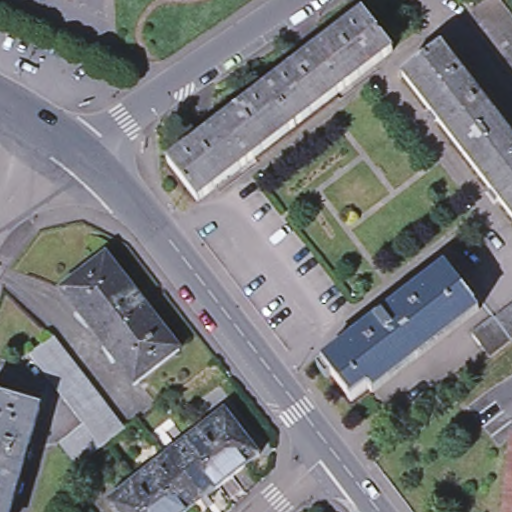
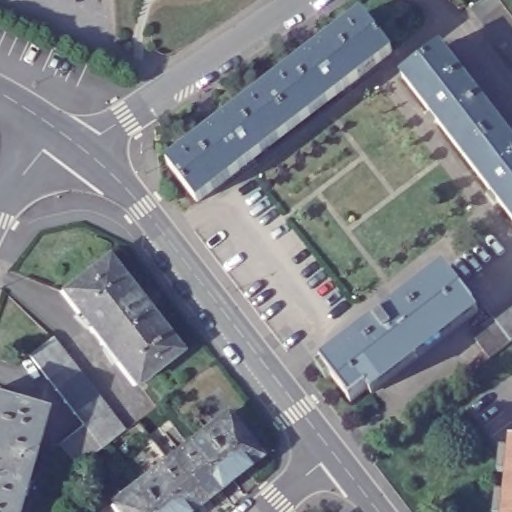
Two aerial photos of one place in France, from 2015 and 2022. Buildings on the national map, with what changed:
unchanged [(471,9),(482,0),(500,0),(512,15),(512,61),(471,9)]
unchanged [(360,19),(390,56),(196,209),(166,172),(360,19)]
unchanged [(438,51),(512,144),(512,222),(400,81),(438,51)]
unchanged [(150,324),(155,319),(180,353),(135,388),(61,292),(107,258),(132,290),(127,295),(150,324)]
unchanged [(446,273),(476,310),(353,407),(323,369),(446,273)]
unchanged [(473,334),(495,317),(496,319),(512,308),(512,342),(492,358),(473,334)]
unchanged [(84,426),(48,379),(30,357),(54,339),(71,361),(107,408),(125,432),(108,444),(102,449),(78,468),(60,444),(84,426)]
unchanged [(10,512),(0,512),(0,399),(40,411),(10,512)]
unchanged [(166,459),(195,436),(200,434),(202,437),(227,417),(260,459),(201,504),(166,459)]
unchanged [(512,452),(512,512),(505,512),(512,452)]
unchanged [(191,512),(114,512),(110,507),(135,488),(132,484),(166,459),(201,504),(191,512)]

